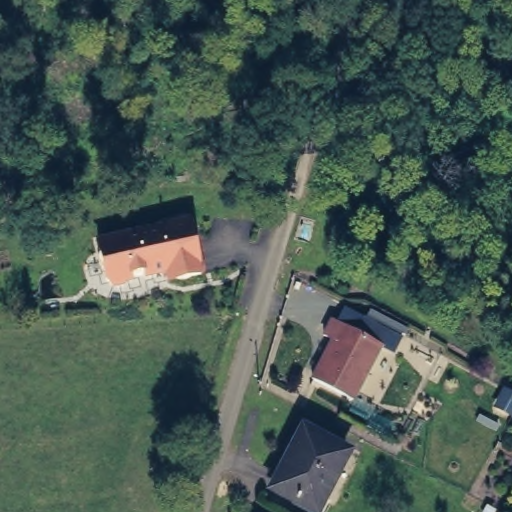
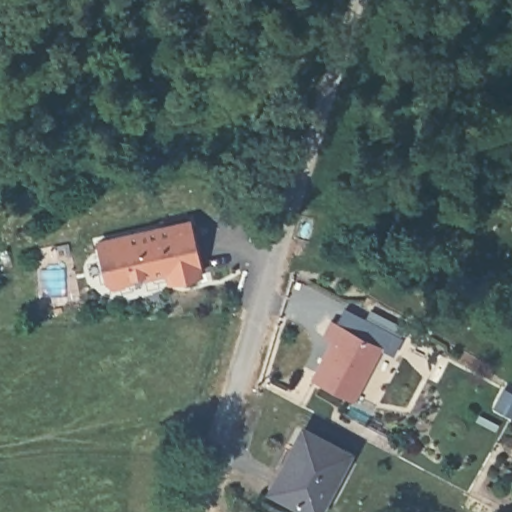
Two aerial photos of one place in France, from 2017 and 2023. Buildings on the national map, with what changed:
unchanged [(303,244),(285,238),(293,209),(312,215),(303,244)]
unchanged [(198,273),(169,279),(167,267),(152,269),(150,259),(125,264),(127,269),(124,274),(111,278),(107,274),(100,238),(188,221),(198,273)]
unchanged [(332,344),(332,341),(330,340),(323,335),(322,334),(322,333),(328,322),(330,319),(332,320),(337,324),(343,314),(375,330),(377,331),(385,335),(387,336),(385,339),(352,398),(351,399),(349,399),(313,378),(311,377),(312,374),(332,344)]
unchanged [(273,479),(302,429),(303,427),(305,428),(345,451),(348,452),(347,454),(317,504),(315,507),(313,505),(275,483),(272,482),(273,479)]

